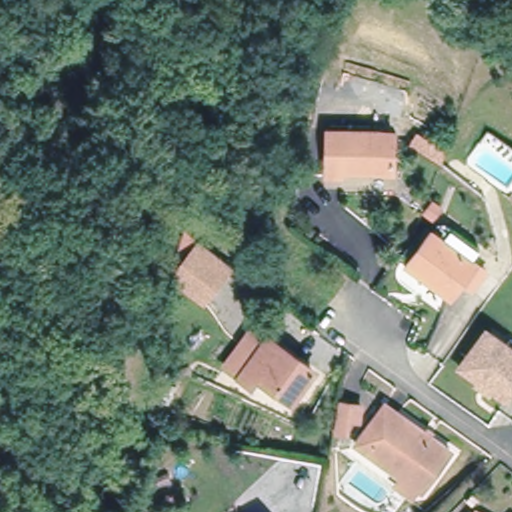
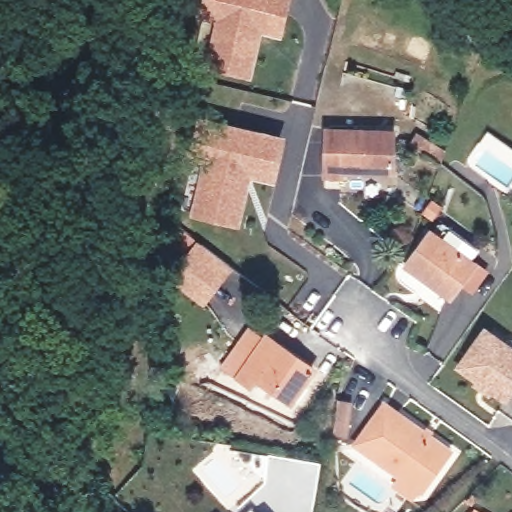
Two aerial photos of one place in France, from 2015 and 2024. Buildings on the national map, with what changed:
new [(221,18),(204,14),(208,0),(288,0),(280,32),(259,27),(252,60),(248,74),(210,65),(213,50),(221,18)]
new [(208,163),(193,159),(202,122),(281,140),(272,178),(248,173),(240,208),(236,223),(195,213),(199,199),(208,163)]
unchanged [(398,173),(347,172),(347,178),(321,177),(321,129),(399,131),(398,173)]
unchanged [(512,165),(480,142),(488,131),(512,149),(512,165)]
unchanged [(434,219),(424,211),(433,201),(442,209),(434,219)]
unchanged [(401,270),(426,236),(434,243),(443,231),(475,253),(466,266),(468,267),(444,301),(401,270)]
unchanged [(201,243),(229,264),(203,300),(174,280),(201,243)]
unchanged [(258,379),(253,386),(239,376),(224,366),(250,330),(265,340),(266,338),(313,370),(291,402),(258,379)]
unchanged [(454,367),(480,330),(502,345),(506,339),(512,344),(512,384),(500,400),(454,367)]
unchanged [(395,485),(402,476),(356,444),(384,404),(449,450),(420,490),(418,488),(412,497),(395,485)]
unchanged [(329,435),(333,406),(345,408),(356,409),(354,424),(343,422),(341,437),(329,435)]

